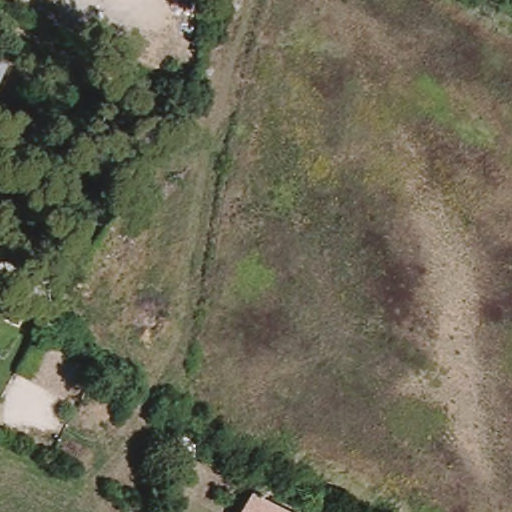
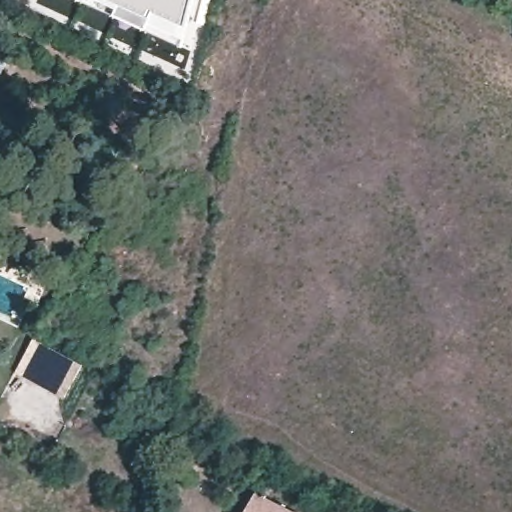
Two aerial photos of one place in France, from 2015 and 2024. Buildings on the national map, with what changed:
new [(86,0),(194,0),(182,42),(86,0)]
unchanged [(86,368),(88,370),(68,403),(21,378),(39,343),(86,368)]
unchanged [(200,446),(191,461),(174,451),(183,435),(200,446)]
unchanged [(255,496),(288,512),(246,512),(255,496)]

